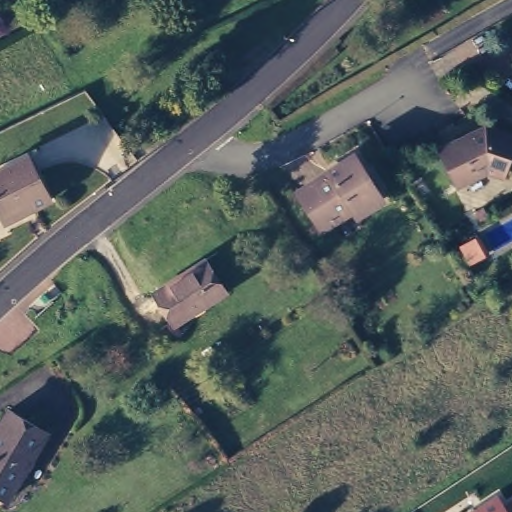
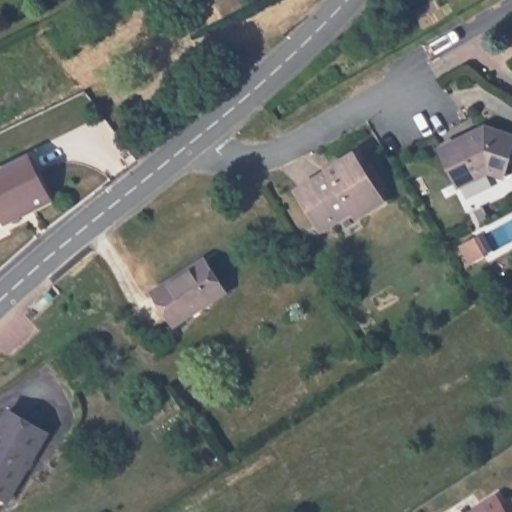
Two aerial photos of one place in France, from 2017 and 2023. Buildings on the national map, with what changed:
unchanged [(512,131),(512,157),(507,171),(492,166),(463,181),(445,144),(490,123),(512,131)]
unchanged [(329,168),(328,166),(355,150),(382,195),(355,211),(351,204),(320,224),(297,187),(329,168)]
unchanged [(50,200),(31,209),(29,204),(2,218),(0,213),(0,171),(29,157),(50,200)]
unchanged [(483,249),(472,256),(465,244),(477,237),(483,249)]
unchanged [(205,259),(224,292),(174,324),(154,292),(205,259)]
unchanged [(0,434),(14,410),(52,432),(11,500),(0,494),(0,434)]
unchanged [(503,506),(512,500),(512,512),(465,512),(494,493),(503,506)]

